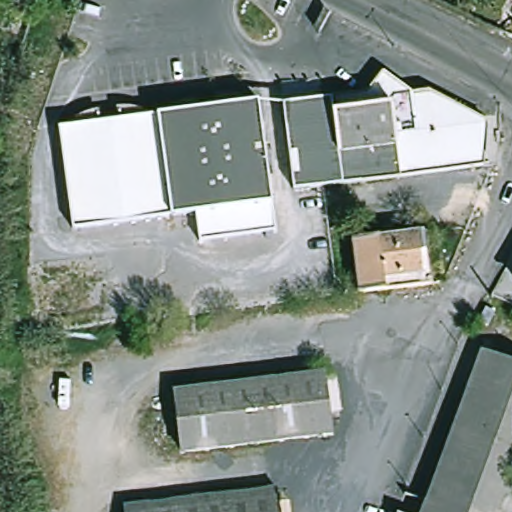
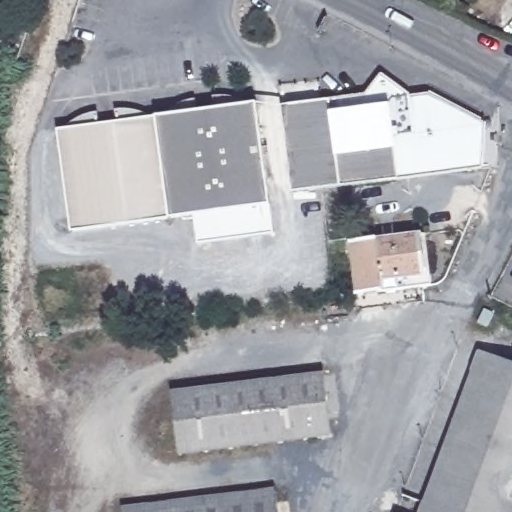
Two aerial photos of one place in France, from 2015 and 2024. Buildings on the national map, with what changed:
unchanged [(368,96),(383,76),(413,97),(432,94),(489,123),(488,134),(487,168),(325,192),(310,104),(323,102),(368,96)]
unchanged [(278,234),(201,245),(197,217),(176,220),(75,234),(61,132),(162,118),(260,104),(278,234)]
unchanged [(325,192),(297,196),(284,108),(310,104),(325,192)]
unchanged [(383,290),(356,294),(349,244),(415,234),(422,233),(428,272),(429,284),(383,290)]
unchanged [(479,306),(489,311),(483,322),(473,317),(479,306)]
unchanged [(512,366),(512,501),(508,512),(423,512),(481,355),(512,366)]
unchanged [(328,436),(180,454),(173,395),(321,378),(328,436)]
unchanged [(130,512),(275,494),(277,512),(130,512)]

